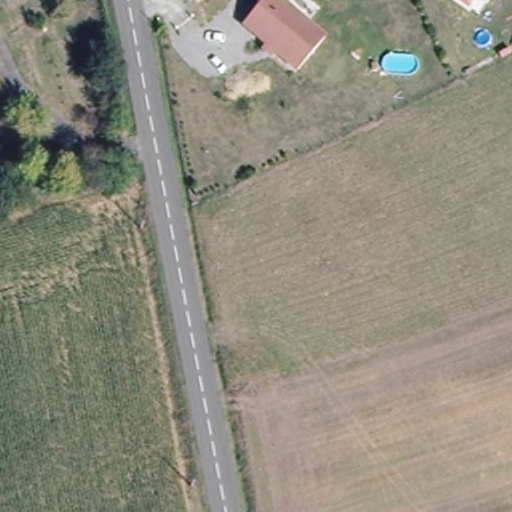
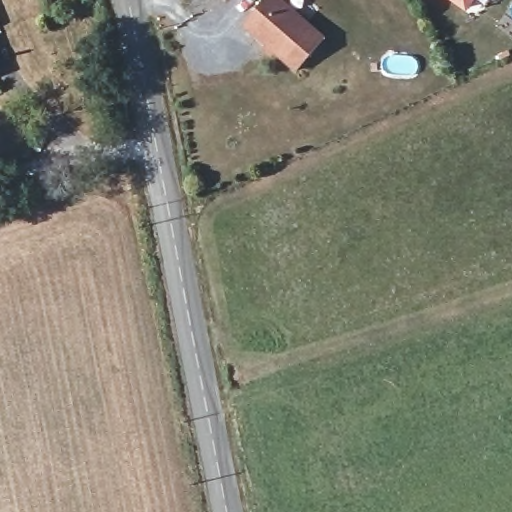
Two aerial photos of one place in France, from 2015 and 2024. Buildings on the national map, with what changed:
unchanged [(292,0),(332,34),(305,66),(250,20),(267,0),(292,0)]

